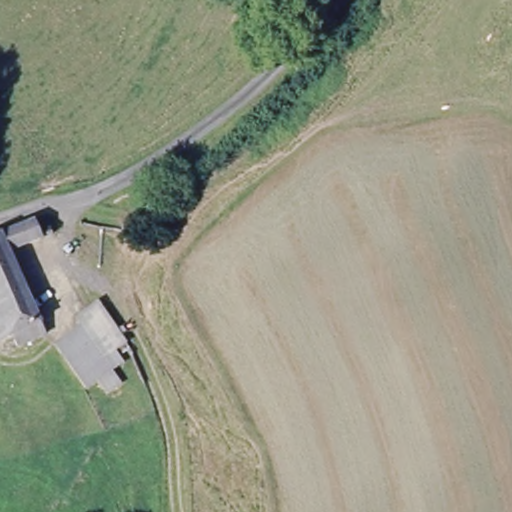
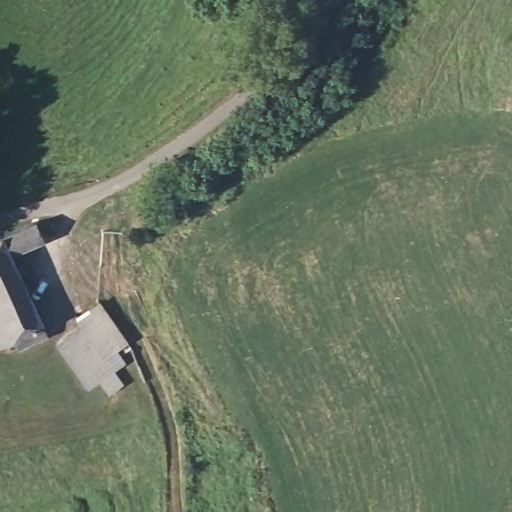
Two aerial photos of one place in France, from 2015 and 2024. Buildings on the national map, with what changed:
unchanged [(66,241),(17,257),(45,347),(13,358),(12,346),(0,349),(0,237),(46,223),(48,228),(59,224),(66,241)]
unchanged [(82,333),(74,319),(99,306),(134,366),(118,374),(125,392),(109,400),(100,387),(89,394),(60,348),(82,333)]

